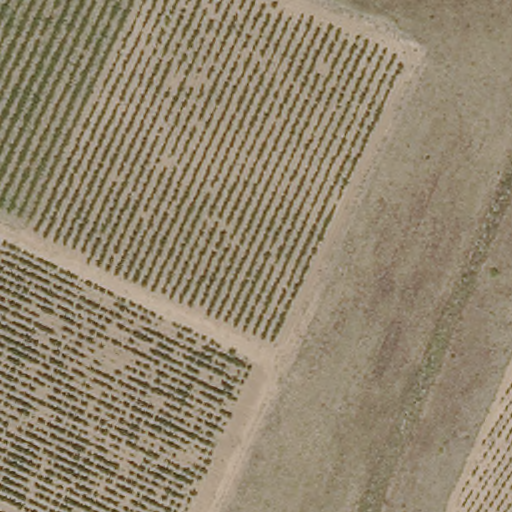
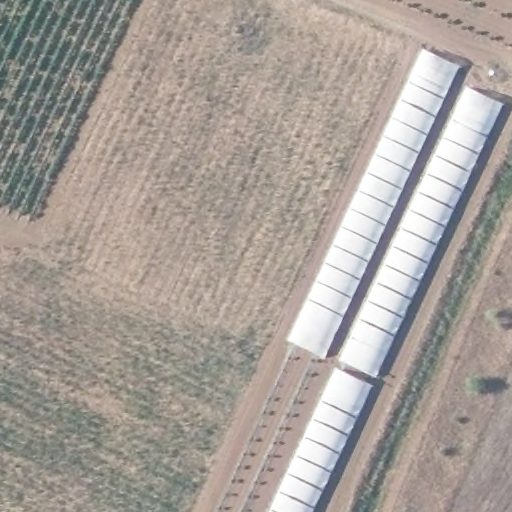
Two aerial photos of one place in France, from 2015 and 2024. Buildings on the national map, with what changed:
new [(423,49),(459,67),(325,358),(288,340),(423,49)]
new [(403,220),(466,87),(503,104),(375,378),(338,360),(403,220)]
new [(334,367),(373,385),(316,505),(313,512),(269,512),(334,367)]

